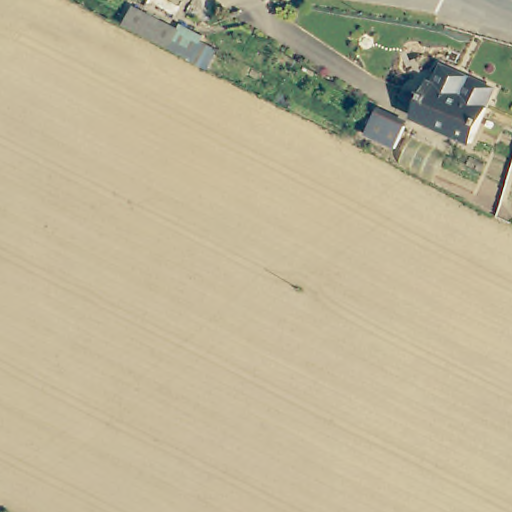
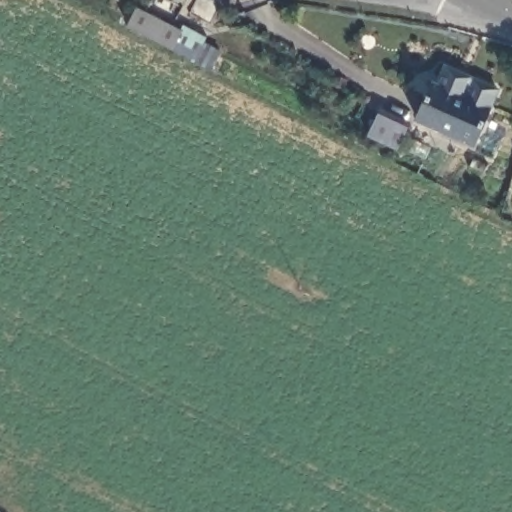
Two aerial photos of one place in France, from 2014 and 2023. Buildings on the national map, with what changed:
unchanged [(187,35),(190,29),(211,40),(200,64),(132,31),(141,12),(187,35)]
unchanged [(500,91),(473,146),(417,117),(436,80),(438,82),(448,64),(500,91)]
unchanged [(407,127),(396,148),(369,134),(380,112),(407,127)]

